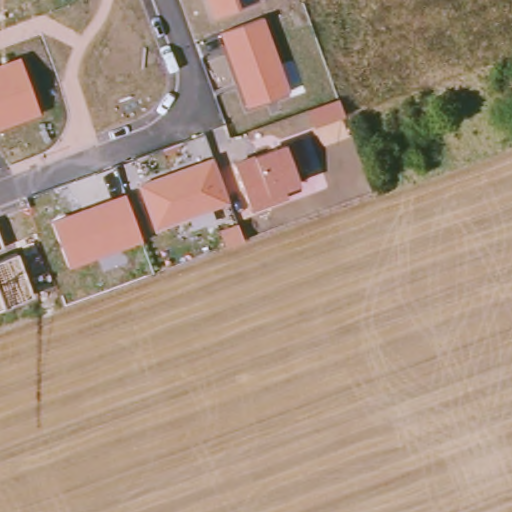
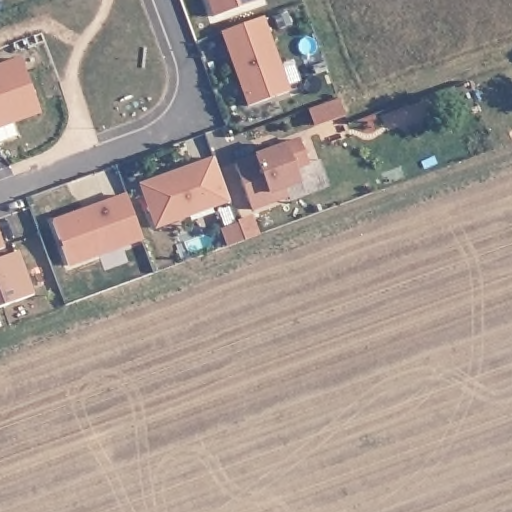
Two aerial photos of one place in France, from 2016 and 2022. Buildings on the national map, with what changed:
unchanged [(212,20),(205,0),(259,0),(261,3),(212,20)]
unchanged [(265,18),(291,89),(246,105),(220,31),(265,18)]
unchanged [(40,114),(0,127),(0,64),(19,58),(40,114)]
unchanged [(283,143),(299,186),(285,191),(286,197),(250,208),(233,160),(283,143)]
unchanged [(214,157),(229,203),(210,209),(215,221),(196,226),(191,216),(154,228),(138,184),(214,157)]
unchanged [(125,194),(142,242),(67,268),(51,221),(125,194)]
unchanged [(0,250),(0,230),(7,248),(0,250)]
unchanged [(34,298),(0,310),(0,260),(18,254),(34,298)]

